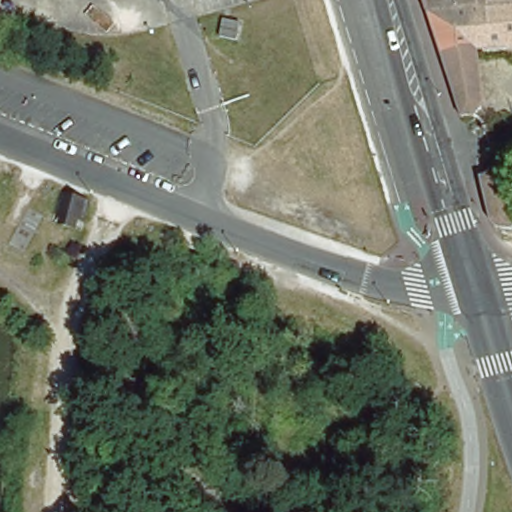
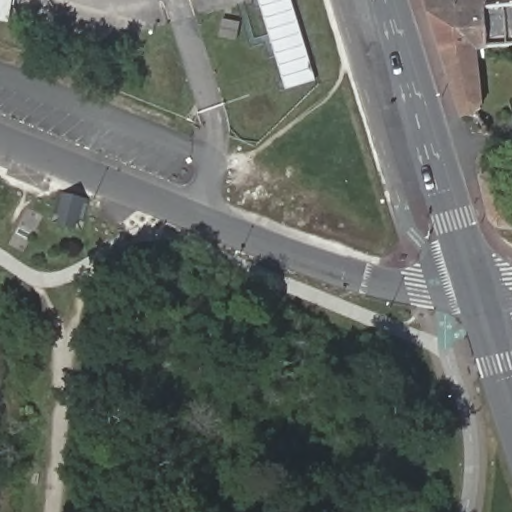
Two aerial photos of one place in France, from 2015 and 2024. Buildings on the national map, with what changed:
new [(317,81),(286,91),(259,0),(292,0),(317,81)]
unchanged [(512,47),(472,51),(439,54),(422,0),(512,0),(512,47)]
unchanged [(241,24),(238,41),(222,39),(225,22),(241,24)]
unchanged [(439,54),(472,51),(472,60),(480,106),(472,119),(458,117),(439,54)]
unchanged [(491,219),(478,177),(490,169),(497,171),(512,216),(512,227),(504,227),(498,226),(495,222),(491,219)]
unchanged [(66,197),(84,200),(76,229),(60,226),(66,197)]

